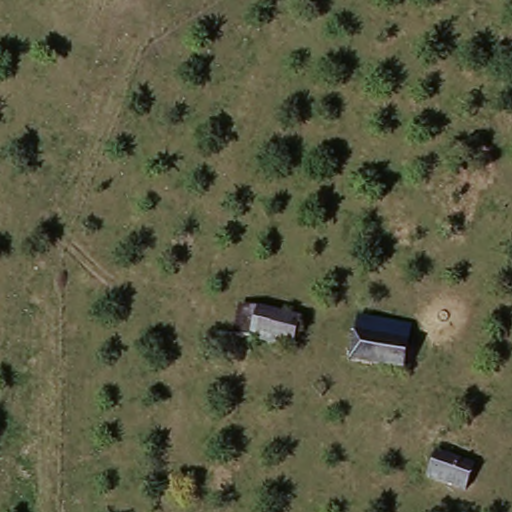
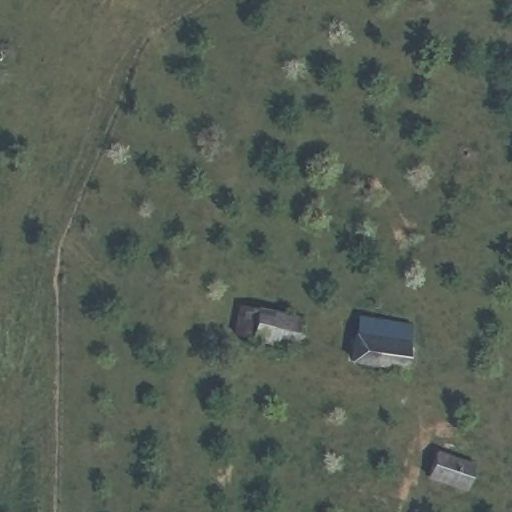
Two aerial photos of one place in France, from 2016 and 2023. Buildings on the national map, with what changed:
unchanged [(295,327),(289,352),(233,337),(239,313),(295,327)]
unchanged [(408,334),(403,377),(349,368),(353,327),(408,334)]
unchanged [(473,462),(471,488),(427,486),(429,462),(473,462)]

